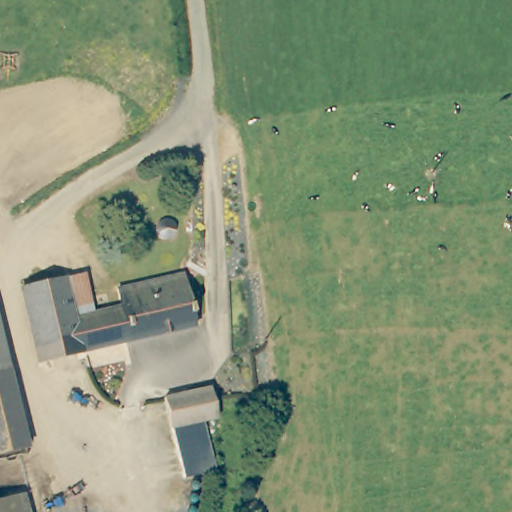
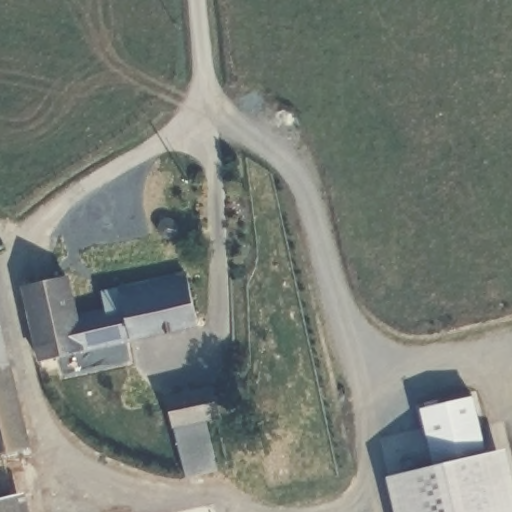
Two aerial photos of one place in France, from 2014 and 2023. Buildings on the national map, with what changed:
unchanged [(183,223),(186,231),(185,240),(176,245),(167,242),(162,233),(165,225),(175,220),(183,223)]
unchanged [(120,287),(185,272),(196,323),(39,359),(22,288),(65,278),(86,273),(94,309),(124,302),(120,287)]
unchanged [(20,391),(0,395),(0,303),(20,391)]
unchanged [(216,386),(222,418),(210,420),(220,470),(189,477),(178,427),(171,396),(216,386)]
unchanged [(33,447),(5,453),(0,428),(0,395),(20,391),(33,447)]
new [(419,408),(473,397),(488,455),(505,451),(512,479),(512,512),(393,512),(385,478),(433,466),(419,408)]
unchanged [(0,454),(0,428),(5,453),(0,454)]
unchanged [(17,497),(21,512),(0,512),(0,501),(17,497)]

